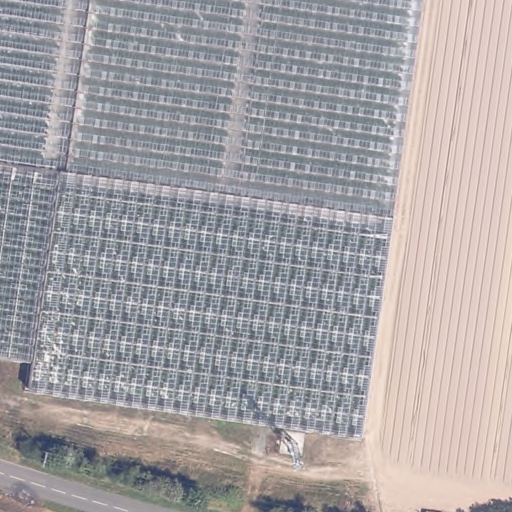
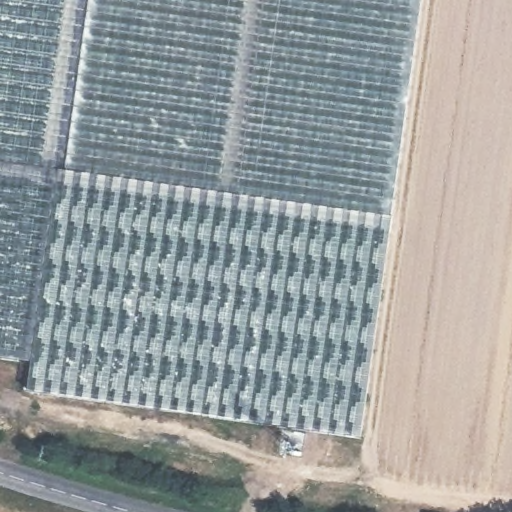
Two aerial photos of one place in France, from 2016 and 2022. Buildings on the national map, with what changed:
unchanged [(387,209),(376,208),(365,281),(341,448),(190,426),(26,401),(32,355),(0,350),(0,0),(415,0),(387,209)]

